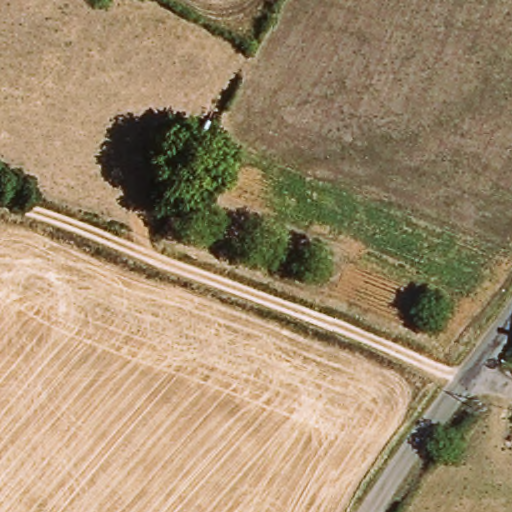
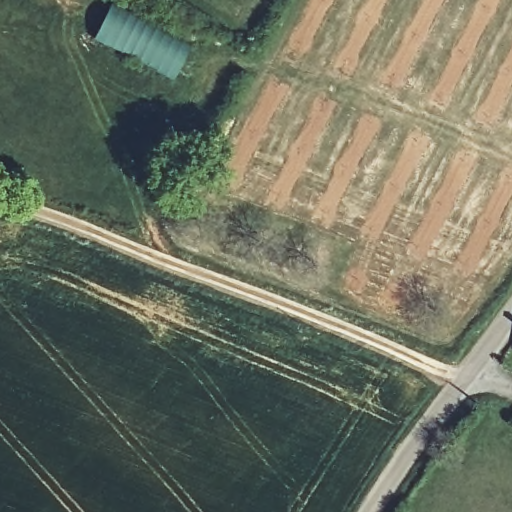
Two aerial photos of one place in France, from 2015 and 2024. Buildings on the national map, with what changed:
new [(97,36),(113,5),(193,47),(176,79),(97,36)]

